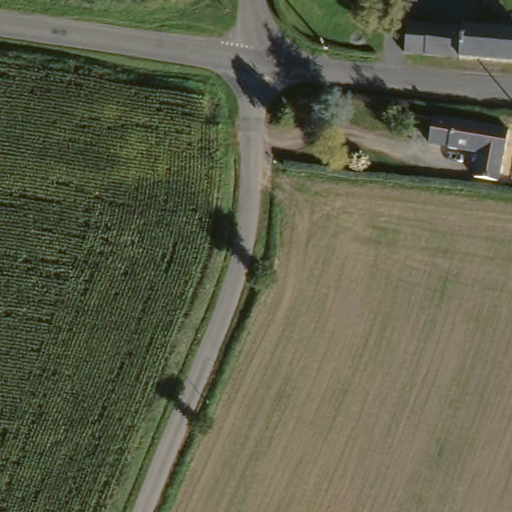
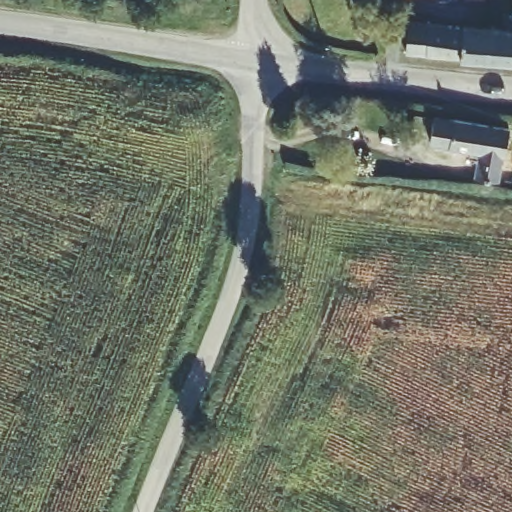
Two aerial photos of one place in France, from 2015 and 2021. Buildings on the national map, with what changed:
unchanged [(512,26),(512,60),(409,52),(413,17),(512,26)]
unchanged [(444,145),(447,118),(504,123),(501,152),(495,152),(493,174),(472,172),(473,148),(444,145)]

